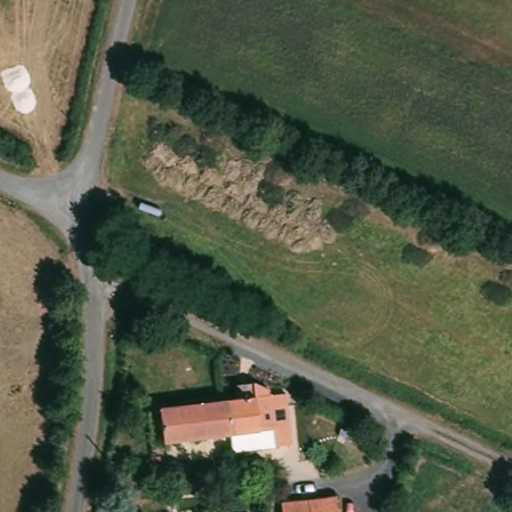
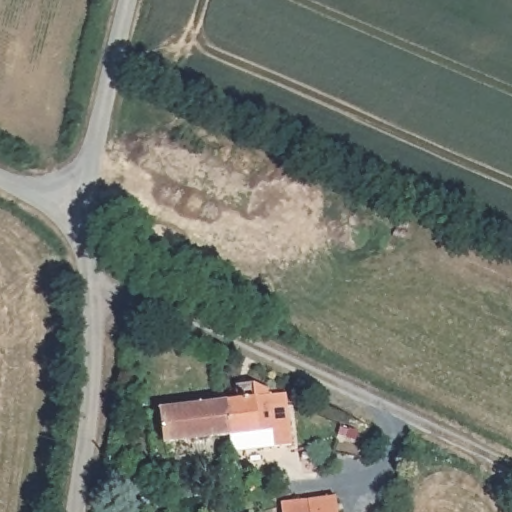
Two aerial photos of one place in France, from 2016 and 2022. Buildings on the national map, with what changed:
unchanged [(237,394),(234,379),(253,377),(271,395),(272,401),(288,398),(295,450),(237,457),(232,428),(227,396),(237,394)]
unchanged [(227,396),(232,428),(199,433),(195,400),(227,396)]
unchanged [(195,400),(199,433),(164,438),(159,405),(195,400)]
unchanged [(341,501),(342,512),(285,512),(284,507),(341,501)]

